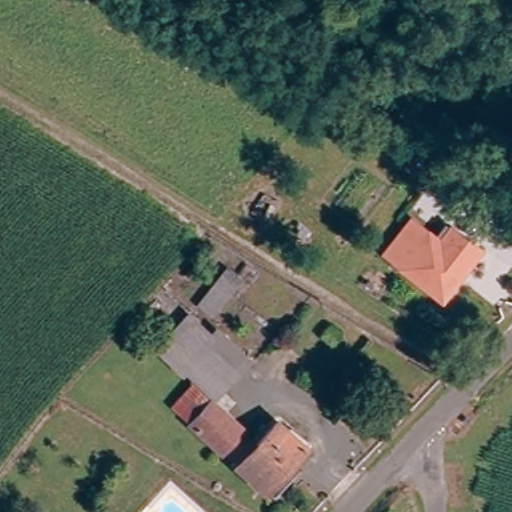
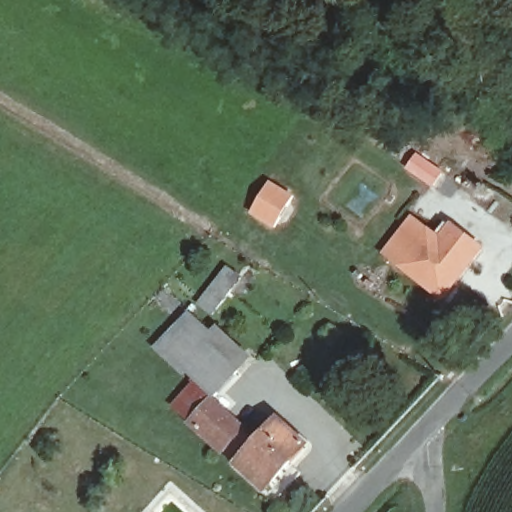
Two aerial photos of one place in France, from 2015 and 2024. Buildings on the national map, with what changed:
new [(295,199),(276,232),(251,218),(271,183),(295,199)]
unchanged [(434,245),(445,232),(479,258),(440,304),(383,262),(411,227),(434,245)]
unchanged [(210,313),(197,303),(226,268),(238,277),(210,313)]
unchanged [(208,399),(239,426),(218,450),(171,407),(196,379),(183,369),(206,343),(236,368),(208,399)]
unchanged [(302,445),(261,490),(234,466),(277,420),(302,445)]

